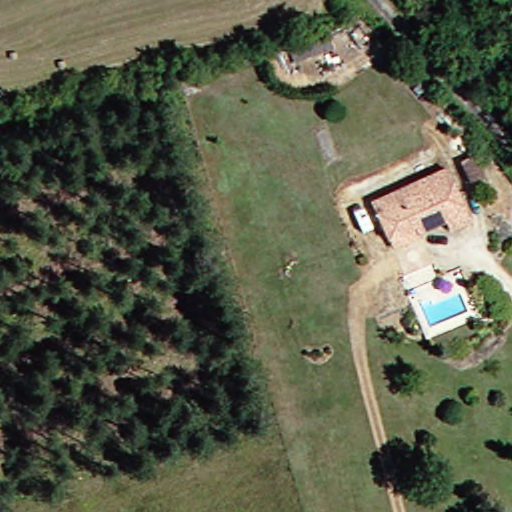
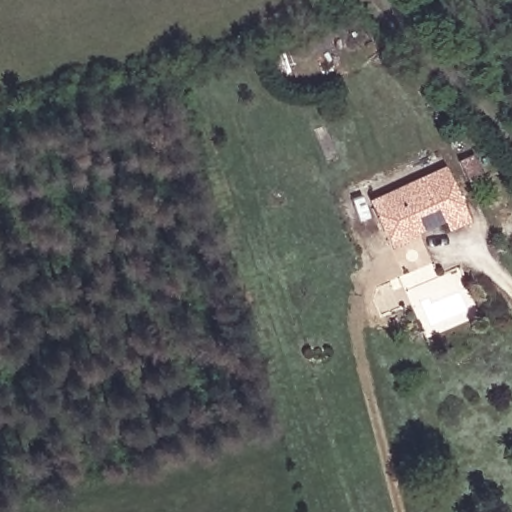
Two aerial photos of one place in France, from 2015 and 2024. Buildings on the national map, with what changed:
unchanged [(474,183),(467,159),(483,154),(491,177),(474,183)]
unchanged [(378,198),(452,167),(474,220),(451,228),(447,220),(417,232),(419,239),(398,248),(393,233),(378,198)]

